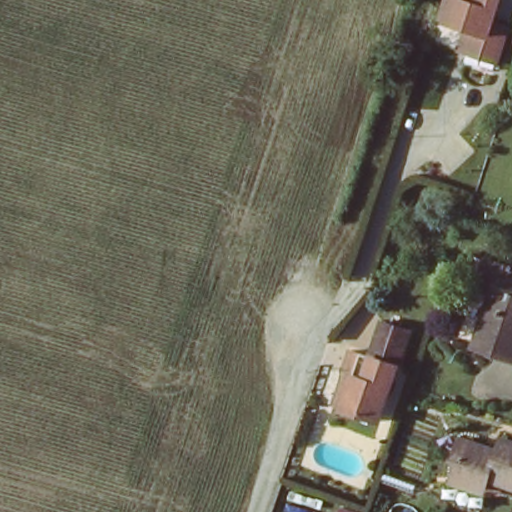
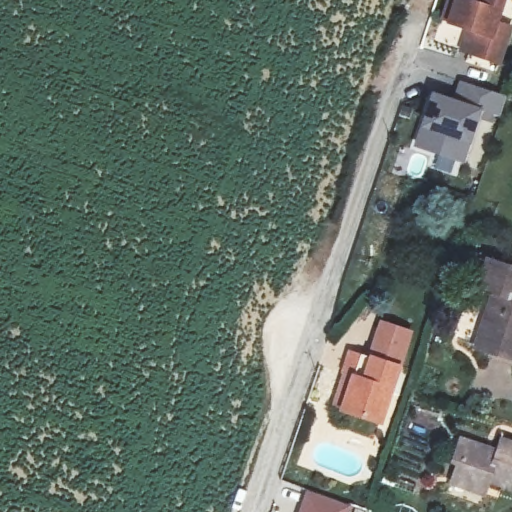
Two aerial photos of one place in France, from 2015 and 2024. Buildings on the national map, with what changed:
unchanged [(445,22),(440,21),(448,0),(503,0),(500,7),(512,12),(512,16),(508,30),(496,64),(466,52),(458,51),(467,31),(445,22)]
new [(440,157),(414,147),(420,127),(431,92),(452,99),(459,81),(505,97),(499,117),(482,111),(471,144),(464,164),(453,160),(449,173),(435,169),(440,157)]
unchanged [(512,275),(512,364),(471,351),(489,296),(476,292),(485,266),(512,275)]
unchanged [(343,370),(341,370),(348,346),(350,347),(371,353),(379,327),(406,335),(381,418),(342,407),(331,402),(343,370)]
unchanged [(445,488),(450,480),(451,477),(456,462),(449,460),(456,440),(492,452),(497,440),(512,445),(512,491),(486,482),(483,492),(481,499),(445,488)]
new [(350,507),(348,512),(298,512),(305,492),(350,507)]

